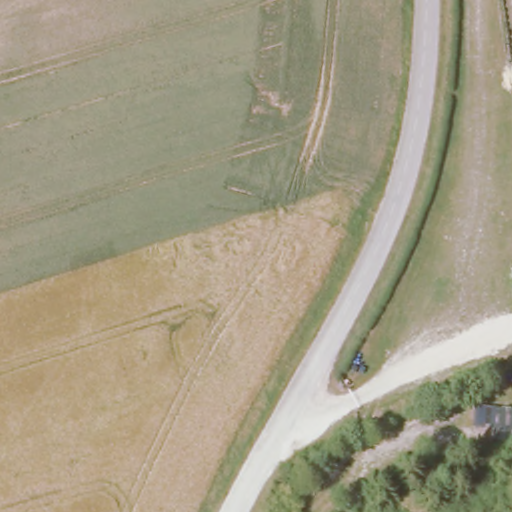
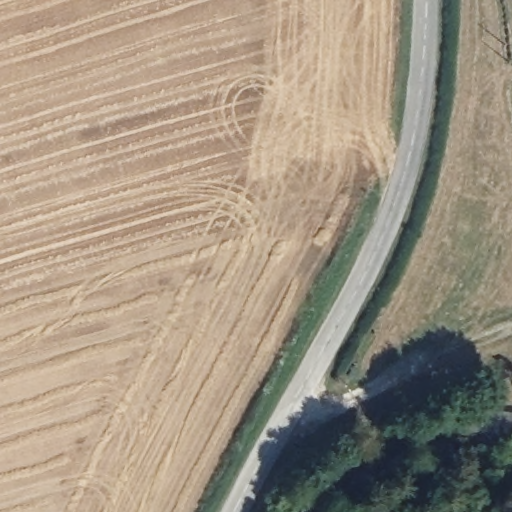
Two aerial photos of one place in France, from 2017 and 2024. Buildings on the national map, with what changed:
unchanged [(512,409),(512,444),(492,443),(494,433),(472,430),(475,407),(512,409)]

